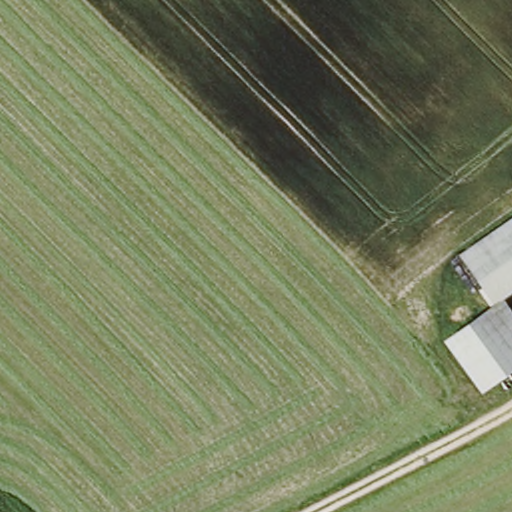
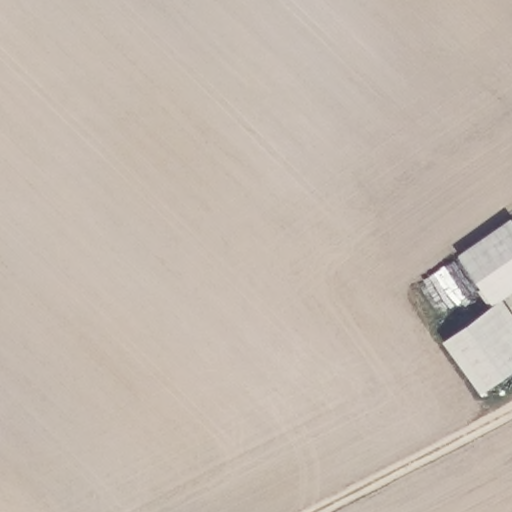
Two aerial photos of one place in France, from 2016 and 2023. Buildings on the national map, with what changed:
unchanged [(479,291),(482,289),(460,256),(510,222),(512,226),(512,294),(492,310),(479,291)]
unchanged [(512,339),(512,371),(480,394),(446,345),(493,312),(512,339)]

